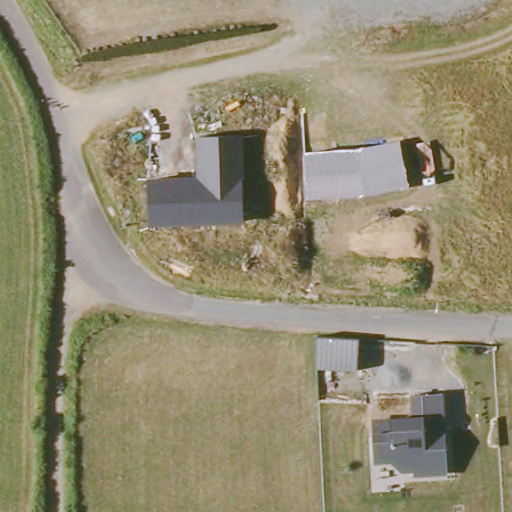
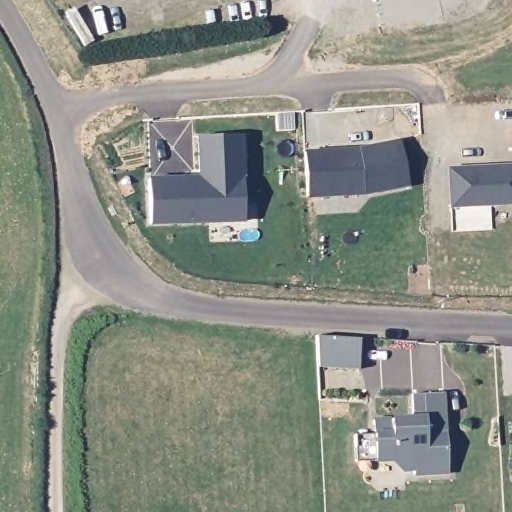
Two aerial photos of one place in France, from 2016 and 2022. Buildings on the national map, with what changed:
unchanged [(148,179),(197,177),(197,138),(244,136),(245,224),(149,227),(148,179)]
unchanged [(305,153),(360,149),(400,140),(410,188),(366,197),(308,199),(305,153)]
new [(447,168),(512,164),(512,205),(449,208),(447,168)]
unchanged [(317,338),(360,340),(358,369),(318,369),(317,338)]
unchanged [(446,392),(450,474),(415,477),(415,472),(402,473),(393,463),(376,463),(374,432),(393,431),(392,417),(413,416),(412,393),(446,392)]

